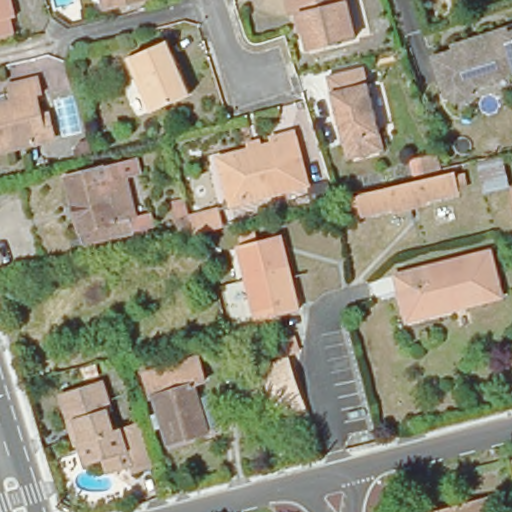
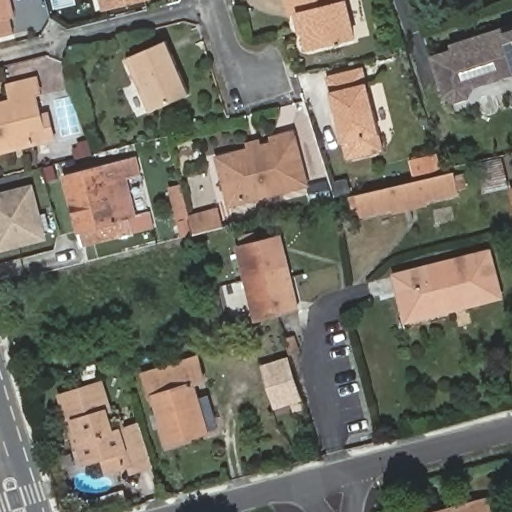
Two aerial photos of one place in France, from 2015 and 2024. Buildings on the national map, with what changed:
unchanged [(21,18),(16,19),(20,33),(0,39),(0,0),(16,0),(21,18)]
unchanged [(102,10),(100,0),(147,0),(102,10)]
unchanged [(295,12),(291,13),(287,0),(344,0),(353,38),(309,48),(304,29),(299,31),(295,12)]
unchanged [(455,101),(446,96),(433,58),(455,51),(453,45),(467,41),(487,34),(502,30),(503,35),(512,31),(512,75),(473,87),(470,95),(468,97),(455,101)]
unchanged [(153,117),(131,65),(171,46),(182,71),(184,77),(194,100),(153,117)]
unchanged [(348,162),(345,146),(327,79),(363,71),(380,138),(384,153),(348,162)]
unchanged [(46,147),(0,158),(0,109),(11,107),(9,100),(7,90),(36,83),(40,101),(35,102),(40,122),(46,120),(52,145),(46,147)]
unchanged [(219,165),(273,151),(272,147),(294,141),(307,191),(231,211),(219,165)]
unchanged [(502,163),(511,192),(486,198),(477,169),(502,163)]
unchanged [(82,245),(66,178),(106,168),(107,173),(119,170),(122,185),(135,232),(82,245)]
unchanged [(453,175),(457,196),(362,219),(360,208),(353,210),(351,200),(444,177),(453,175)]
unchanged [(510,186),(512,185),(512,192),(510,186)]
new [(24,199),(34,196),(45,240),(0,251),(0,196),(22,190),(24,199)]
unchanged [(177,215),(186,212),(190,230),(181,232),(177,215)]
unchanged [(197,219),(226,212),(227,215),(240,212),(244,226),(202,237),(197,219)]
unchanged [(282,239),(292,237),(309,307),(299,310),(280,316),(259,321),(251,323),(234,251),(242,249),(282,239)]
unchanged [(401,275),(492,254),(502,298),(411,318),(401,275)]
unchanged [(156,387),(153,387),(147,363),(200,349),(206,373),(194,376),(198,391),(210,388),(219,418),(206,422),(207,424),(169,435),(156,387)]
unchanged [(266,366),(290,359),(302,404),(297,406),(296,401),(277,406),(266,366)]
unchanged [(103,453),(87,458),(80,437),(76,438),(70,418),(62,391),(102,379),(111,406),(107,406),(114,426),(120,424),(139,419),(152,461),(131,468),(129,461),(107,467),(103,453)]
unchanged [(489,512),(442,512),(487,500),(489,512)]

